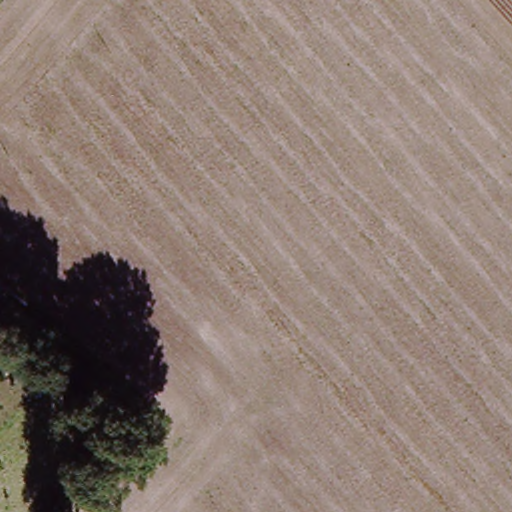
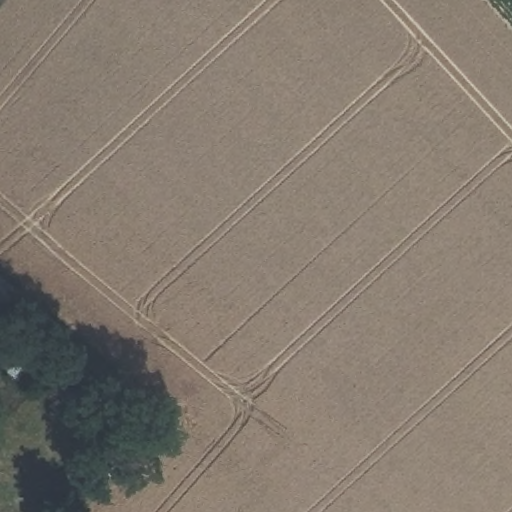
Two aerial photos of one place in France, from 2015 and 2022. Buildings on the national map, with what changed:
[]

